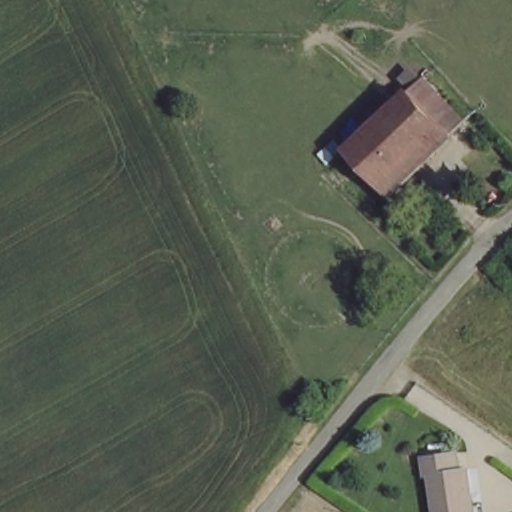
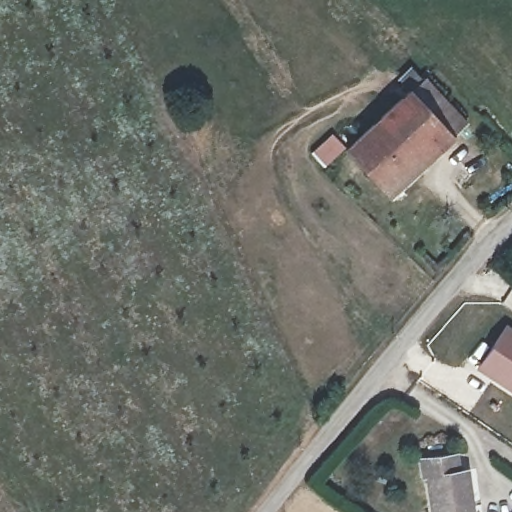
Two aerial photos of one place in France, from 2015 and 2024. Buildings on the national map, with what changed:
unchanged [(397,190),(358,143),(420,88),(426,95),(460,134),(397,190)]
new [(503,324),(512,329),(512,392),(475,368),(503,324)]
unchanged [(466,469),(474,469),(479,503),(472,505),(473,512),(441,512),(437,473),(428,471),(428,457),(462,453),(466,469)]

